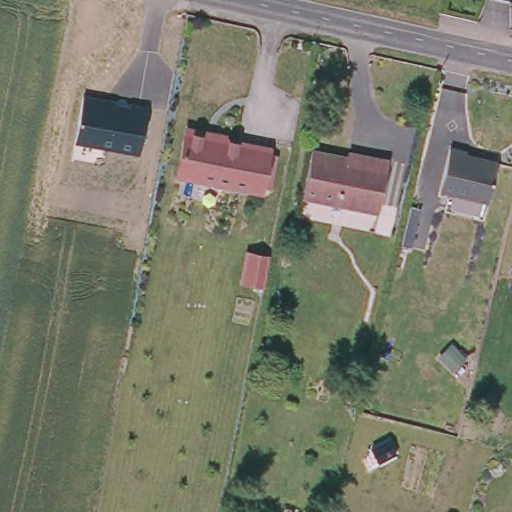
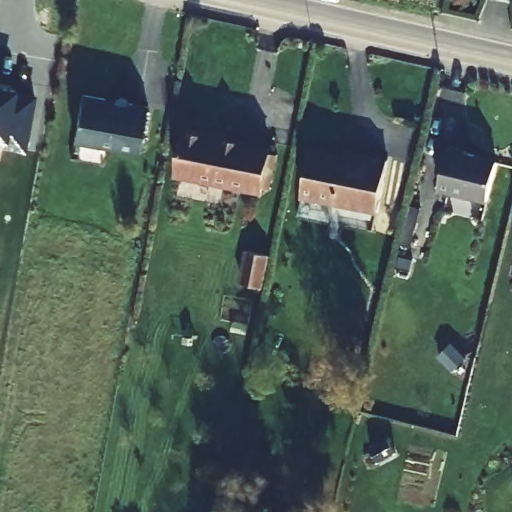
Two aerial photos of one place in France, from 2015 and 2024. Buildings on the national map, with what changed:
new [(14,94),(35,97),(25,151),(4,147),(5,138),(0,138),(0,89),(15,91),(14,94)]
unchanged [(148,104),(140,152),(75,140),(82,93),(148,104)]
unchanged [(230,133),(229,138),(272,145),(265,193),(174,176),(185,123),(230,133)]
unchanged [(362,149),(362,143),(388,148),(373,219),(298,206),(311,140),(362,149)]
unchanged [(470,147),(469,152),(497,158),(488,201),(437,189),(448,142),(470,147)]
unchanged [(251,249),(273,254),(267,286),(245,281),(251,249)]

